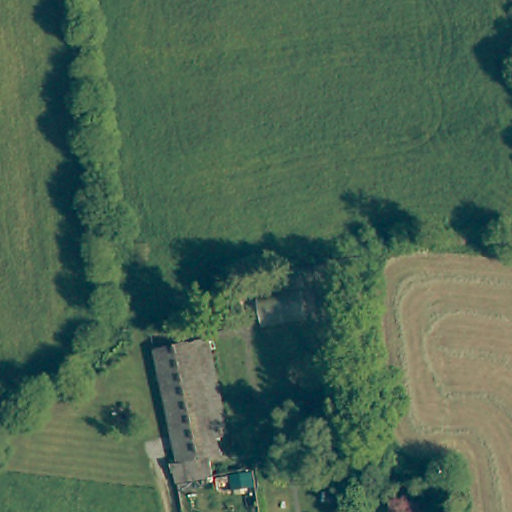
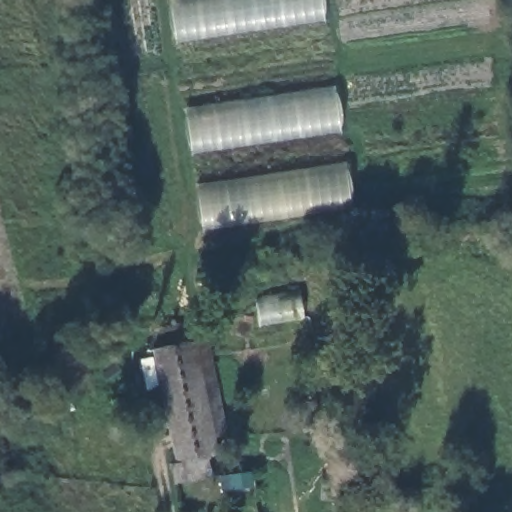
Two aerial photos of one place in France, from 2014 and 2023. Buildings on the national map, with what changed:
new [(327,20),(175,43),(169,0),(324,0),(327,20)]
new [(186,107),(336,85),(342,132),(191,153),(186,107)]
new [(347,161),(353,209),(202,231),(197,184),(347,161)]
new [(209,338),(227,435),(215,438),(220,455),(209,457),(211,475),(175,485),(171,464),(176,463),(152,350),(209,338)]
demolished [(189,346),(217,472),(185,479),(180,465),(171,467),(149,356),(189,346)]

